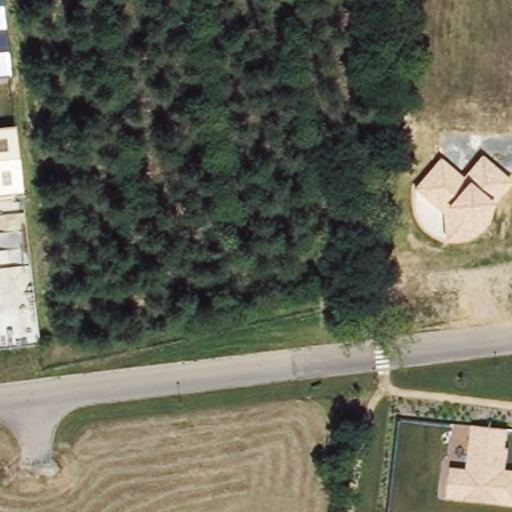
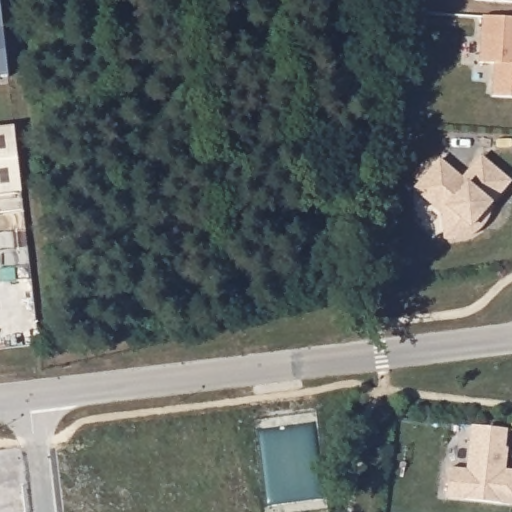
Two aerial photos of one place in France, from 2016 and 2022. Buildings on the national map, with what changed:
unchanged [(8,75),(0,75),(0,0),(8,75)]
new [(512,4),(475,2),(475,0),(512,0),(512,4)]
new [(512,97),(492,97),(494,62),(480,63),(482,16),(512,18),(512,97)]
unchanged [(13,129),(21,190),(0,193),(0,130),(13,129)]
unchanged [(415,187),(440,158),(463,177),(484,155),(512,180),(512,184),(493,206),(489,224),(473,239),(446,241),(444,213),(415,187)]
unchanged [(449,467),(464,468),(469,425),(510,430),(506,470),(512,470),(512,506),(446,499),(449,467)]

